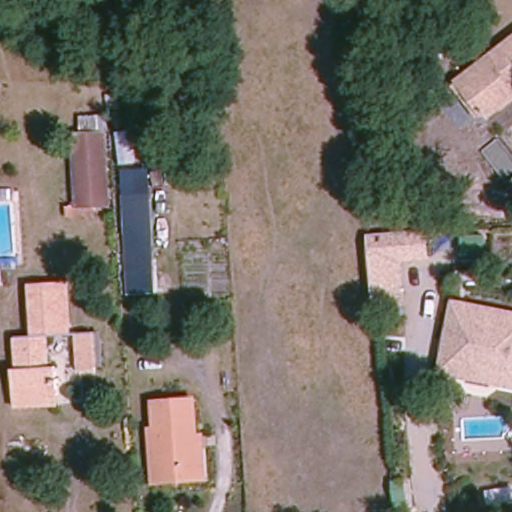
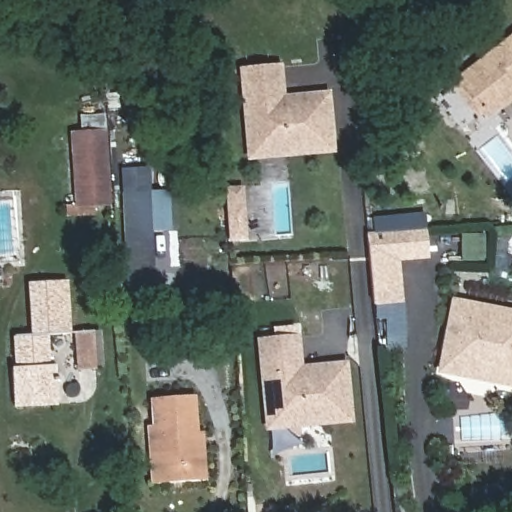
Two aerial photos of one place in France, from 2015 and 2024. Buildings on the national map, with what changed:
unchanged [(456,76),(512,34),(512,98),(487,116),(456,76)]
new [(246,160),(239,70),(282,65),(285,94),(330,90),(335,153),(246,160)]
unchanged [(78,133),(111,131),(115,202),(82,205),(78,133)]
unchanged [(120,171),(147,170),(150,268),(125,270),(120,171)]
new [(240,190),(244,232),(228,234),(225,191),(240,190)]
demolished [(105,225),(104,260),(76,259),(77,247),(70,247),(71,225),(105,225)]
unchanged [(426,259),(396,261),(399,304),(373,306),(369,271),(369,269),(366,237),(424,232),(426,259)]
unchanged [(29,282),(59,281),(69,280),(72,330),(61,331),(32,332),(29,282)]
unchanged [(495,371),(475,367),(465,375),(443,370),(448,343),(454,340),(456,330),(451,330),(456,303),(512,313),(512,384),(502,381),(495,371)]
unchanged [(96,330),(97,367),(77,368),(76,331),(96,330)]
unchanged [(17,407),(15,407),(14,397),(12,367),(18,367),(16,336),(32,335),(47,335),(48,365),(56,365),(57,395),(58,405),(17,407)]
new [(265,431),(255,338),(299,335),(302,365),(347,361),(354,423),(265,431)]
unchanged [(153,479),(148,480),(145,427),(151,427),(150,400),(189,397),(191,435),(197,434),(198,462),(199,476),(153,479)]

